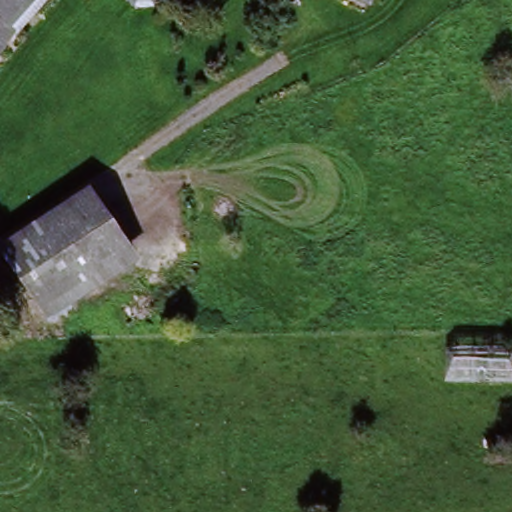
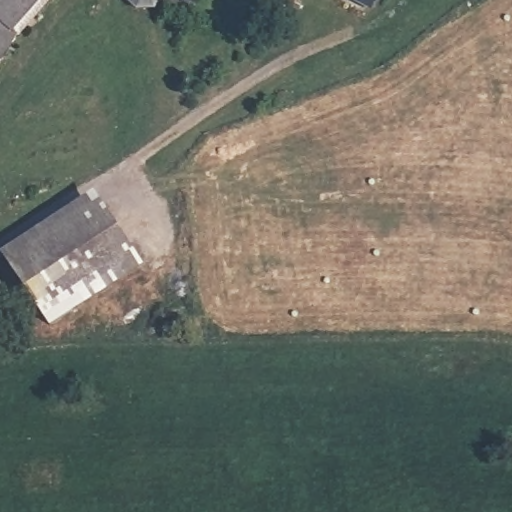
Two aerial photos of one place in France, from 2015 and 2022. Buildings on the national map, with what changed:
unchanged [(3,42),(0,48),(0,0),(39,0),(3,42)]
unchanged [(193,14),(162,1),(150,7),(139,7),(129,2),(128,0),(197,0),(199,0),(193,14)]
unchanged [(369,11),(348,0),(375,0),(369,11)]
unchanged [(1,253),(95,196),(142,271),(49,328),(1,253)]

